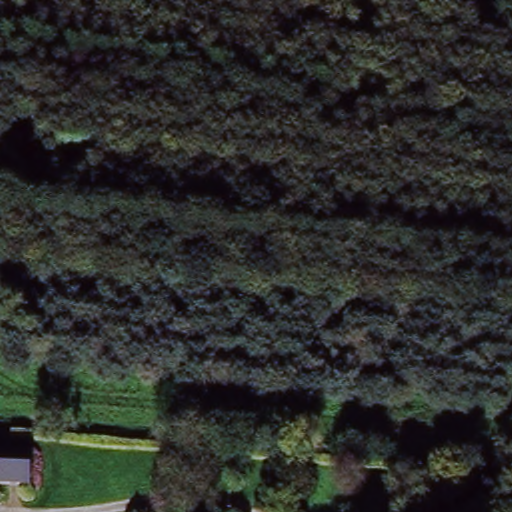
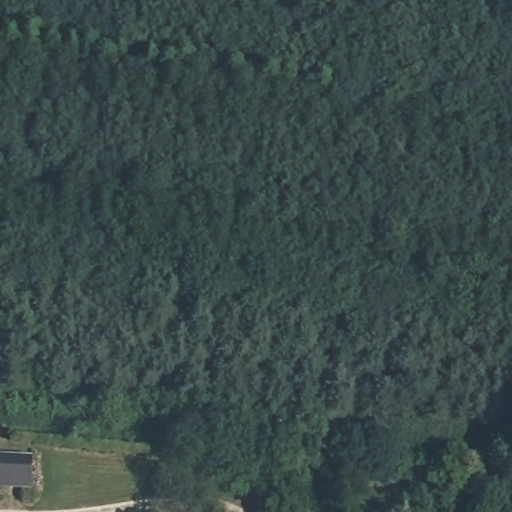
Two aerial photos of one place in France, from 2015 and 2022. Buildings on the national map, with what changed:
unchanged [(31,489),(0,487),(0,453),(32,456),(31,489)]

